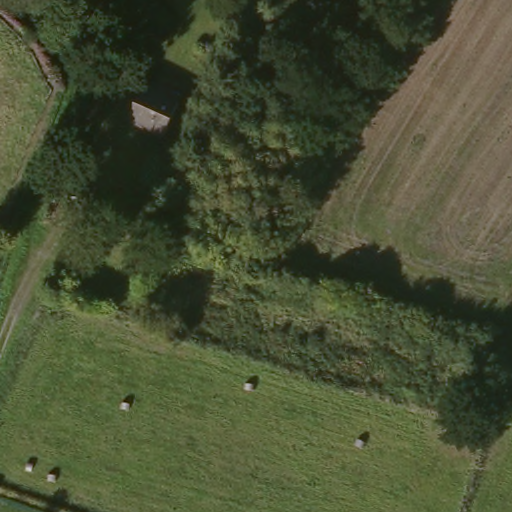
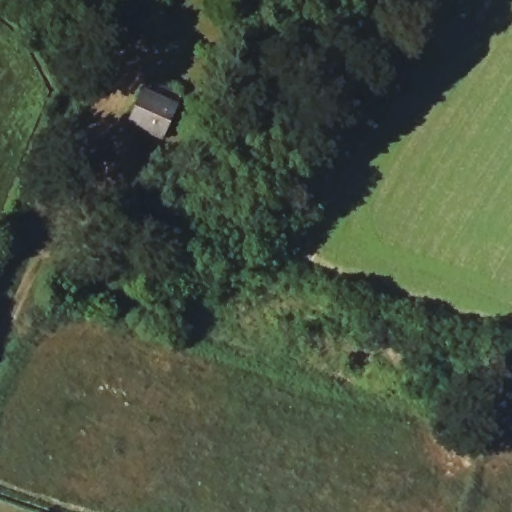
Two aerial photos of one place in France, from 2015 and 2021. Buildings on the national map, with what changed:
unchanged [(184,110),(168,142),(134,126),(149,93),(184,110)]

